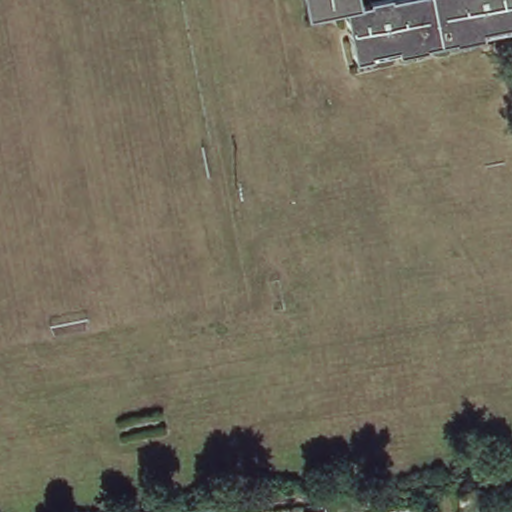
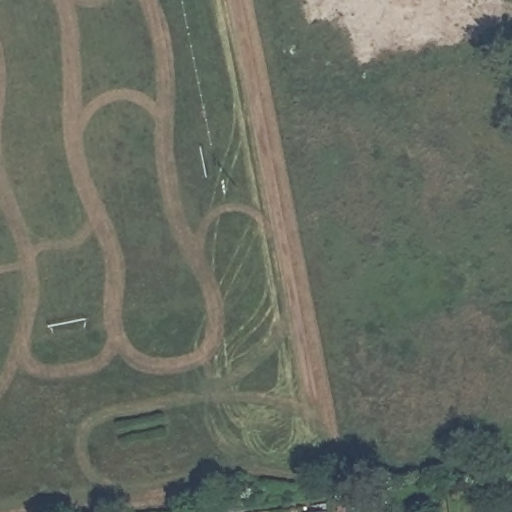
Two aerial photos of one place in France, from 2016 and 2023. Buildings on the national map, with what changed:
demolished [(368,4),(368,0),(512,0),(512,30),(508,31),(507,26),(452,37),(453,42),(426,48),(425,43),(371,53),(372,59),(355,62),(343,9),(307,16),(304,0),(357,0),(358,6),(368,4)]

